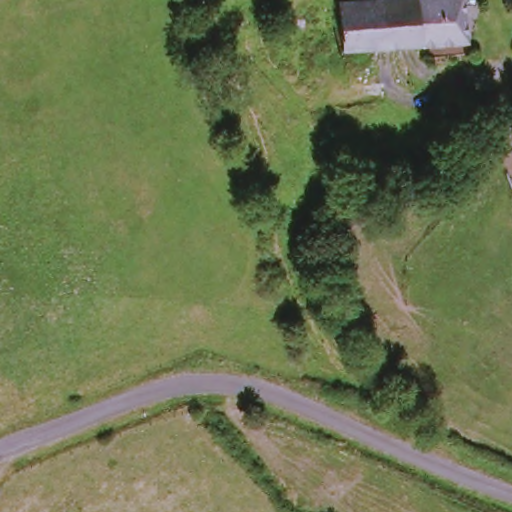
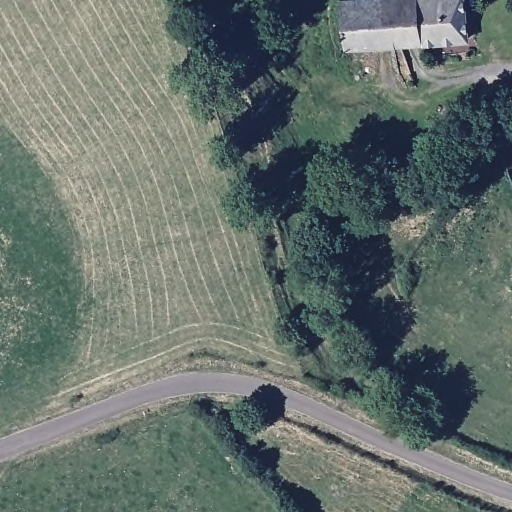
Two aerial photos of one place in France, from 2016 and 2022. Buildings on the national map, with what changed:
unchanged [(463,35),(340,48),(338,0),(461,0),(463,35)]

